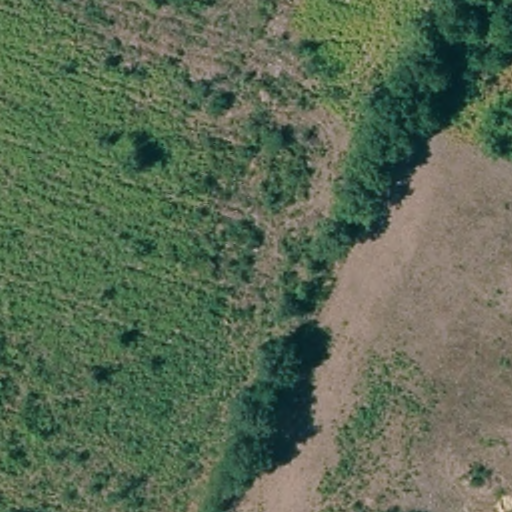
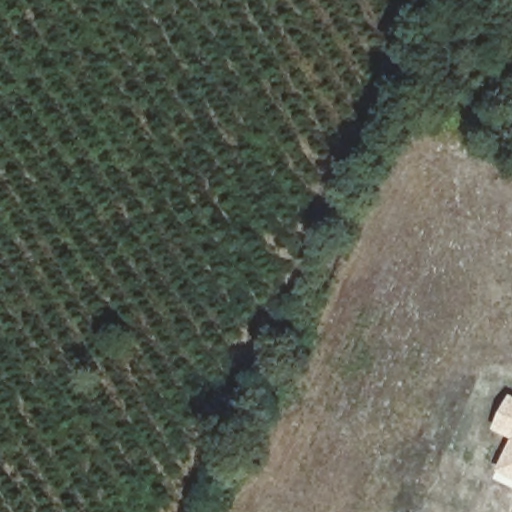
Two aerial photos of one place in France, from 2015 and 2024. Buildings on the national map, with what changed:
new [(493,430),(511,395),(512,395),(512,488),(492,478),(512,439),(493,430)]

